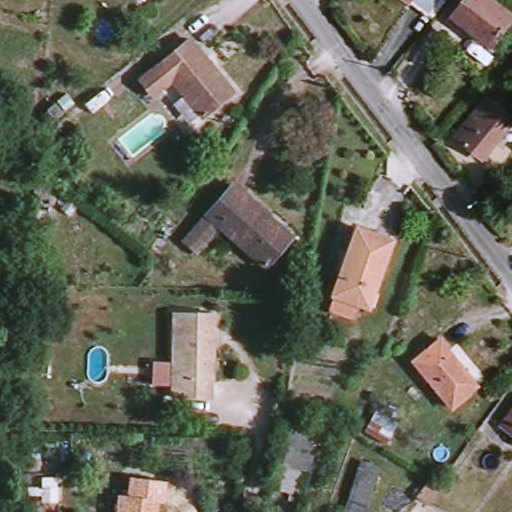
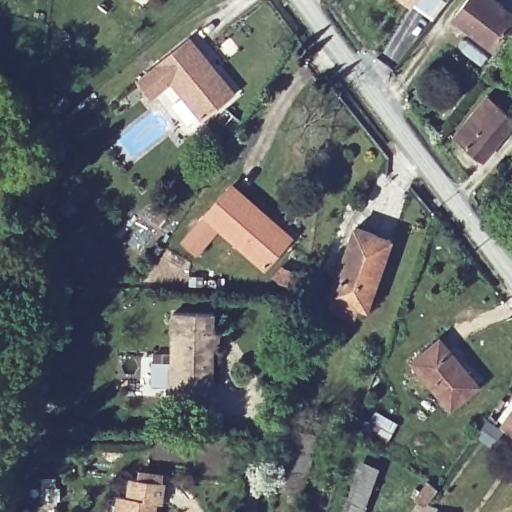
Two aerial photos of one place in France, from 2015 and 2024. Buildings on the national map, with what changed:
unchanged [(433,15),(415,1),(414,0),(444,0),(433,15)]
unchanged [(512,9),(512,29),(500,45),(460,16),(473,0),(500,0),(512,9)]
unchanged [(241,89),(211,114),(179,77),(160,94),(147,78),(166,62),(196,36),(224,68),(241,89)]
unchanged [(512,108),(512,137),(493,160),(466,138),(499,97),(512,108)]
unchanged [(236,185),(300,242),(276,266),(229,225),(212,210),(236,185)]
unchanged [(340,306),(344,292),(339,291),(362,222),(400,235),(377,303),(367,300),(363,315),(340,306)]
unchanged [(214,386),(212,386),(211,402),(174,400),(179,315),(219,318),(217,335),(222,335),(221,347),(216,352),(214,386)]
unchanged [(485,390),(461,409),(423,361),(449,341),(485,390)]
unchanged [(512,417),(512,427),(507,425),(512,417)]
unchanged [(320,434),(315,470),(306,469),(300,502),(276,499),(287,428),(320,434)]
unchanged [(362,512),(345,512),(359,462),(375,466),(362,512)]
unchanged [(446,490),(437,505),(428,500),(435,486),(446,490)]
unchanged [(161,505),(161,512),(122,512),(123,500),(161,505)]
unchanged [(438,512),(436,512),(437,511),(438,512)]

